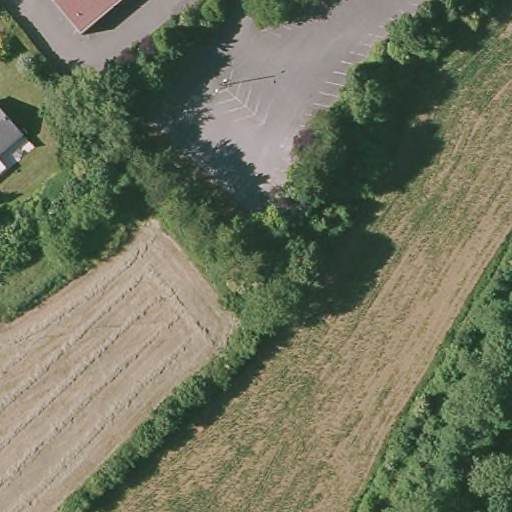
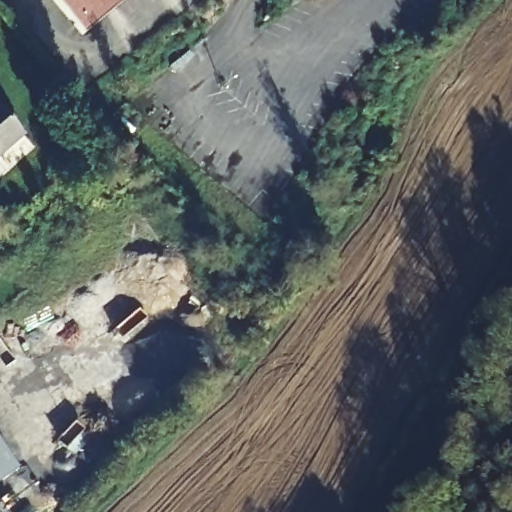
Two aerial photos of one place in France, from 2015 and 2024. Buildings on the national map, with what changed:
unchanged [(119,0),(80,30),(57,0),(119,0)]
unchanged [(22,131),(0,147),(0,102),(22,131)]
unchanged [(4,165),(0,168),(0,160),(4,165)]
new [(20,471),(0,484),(0,444),(20,471)]

